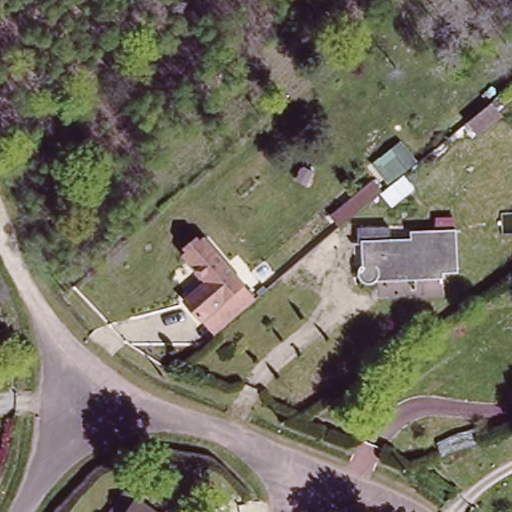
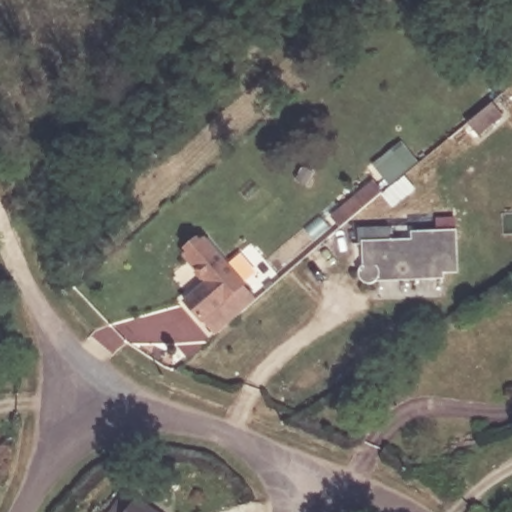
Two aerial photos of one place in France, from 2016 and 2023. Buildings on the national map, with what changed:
unchanged [(356,279),(356,266),(366,257),(369,257),(369,240),(359,241),(358,223),(387,222),(387,239),(405,238),(405,231),(448,230),(449,265),(430,265),(430,275),(384,275),(384,280),(378,285),(367,285),(356,279)]
unchanged [(201,315),(185,296),(207,278),(186,253),(206,237),(257,300),(227,324),(215,334),(201,315)]
unchanged [(103,504),(122,482),(137,495),(141,489),(168,512),(111,512),(103,504)]

